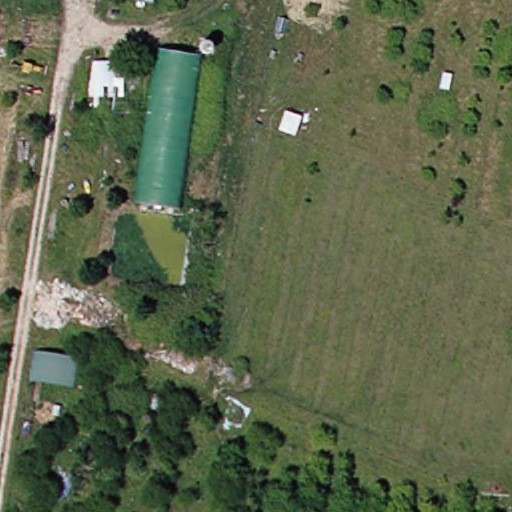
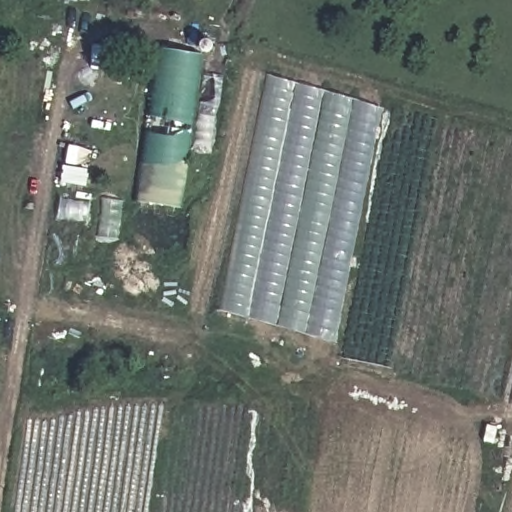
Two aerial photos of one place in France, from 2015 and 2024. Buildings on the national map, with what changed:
unchanged [(128,203),(150,50),(193,56),(171,209),(128,203)]
new [(335,342),(220,310),(271,76),(386,110),(335,342)]

